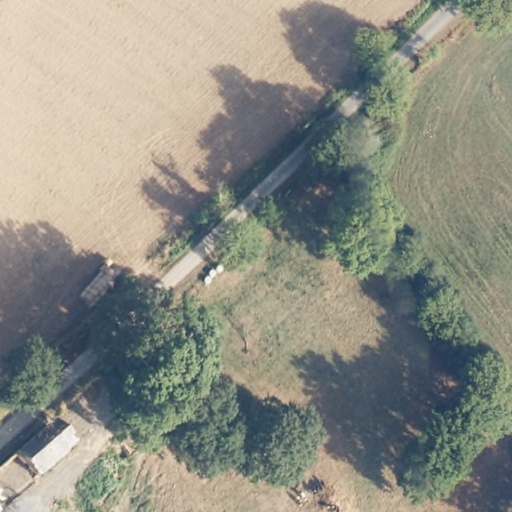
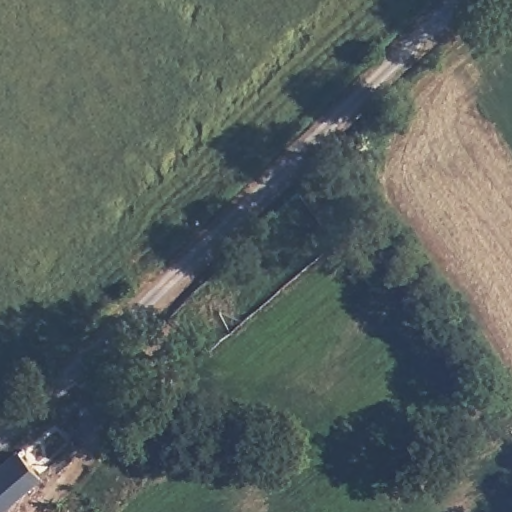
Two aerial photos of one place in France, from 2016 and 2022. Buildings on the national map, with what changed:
unchanged [(76,439),(41,474),(14,450),(54,413),(76,439)]
unchanged [(2,512),(0,512),(0,464),(14,450),(41,474),(2,512)]

